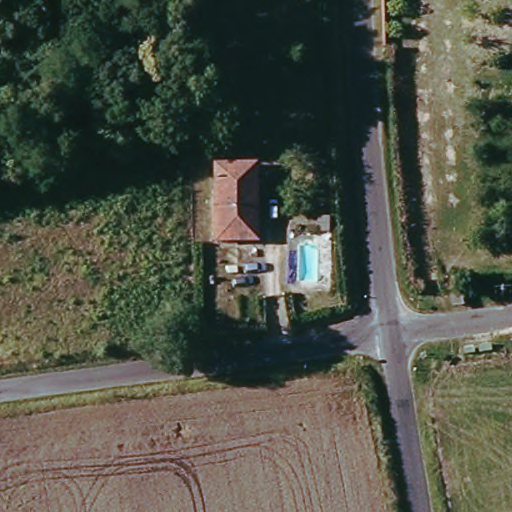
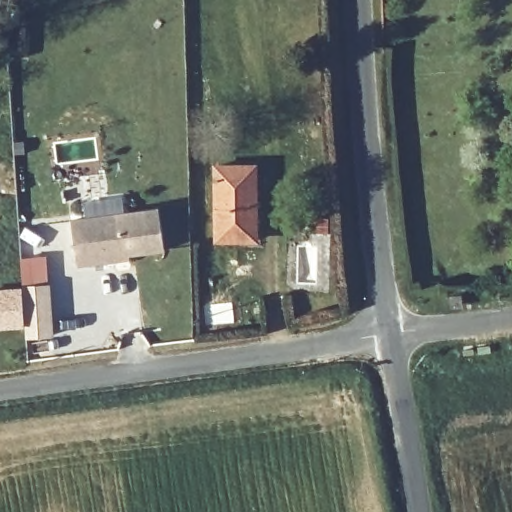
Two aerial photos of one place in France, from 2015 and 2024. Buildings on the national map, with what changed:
unchanged [(216,161),(251,160),(253,235),(218,236),(216,161)]
new [(114,263),(76,268),(70,222),(158,212),(164,252),(127,257),(129,261),(114,263)]
new [(25,339),(22,289),(20,261),(46,260),(47,287),(50,337),(25,339)]
new [(21,292),(24,327),(0,328),(0,292),(21,292)]

